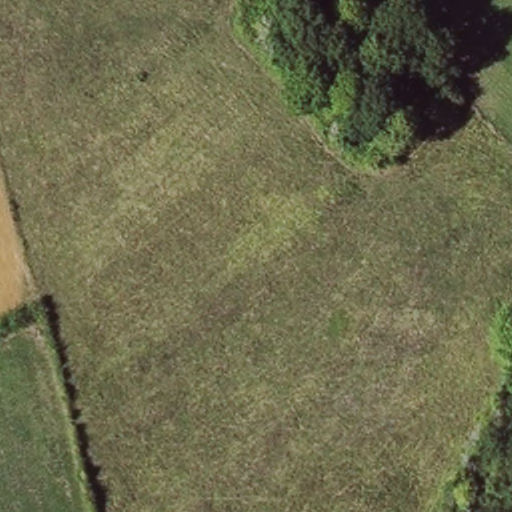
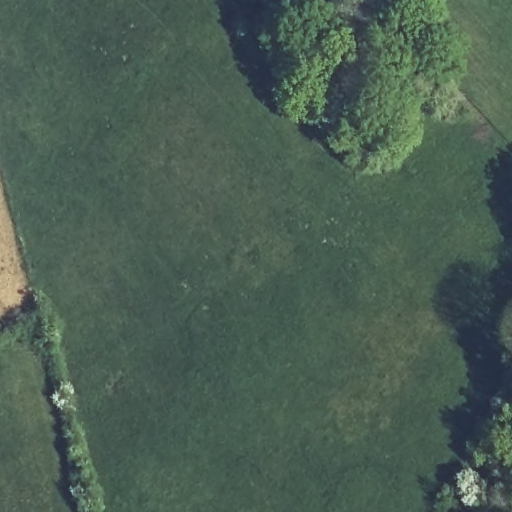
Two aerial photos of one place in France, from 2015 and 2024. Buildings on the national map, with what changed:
[]

